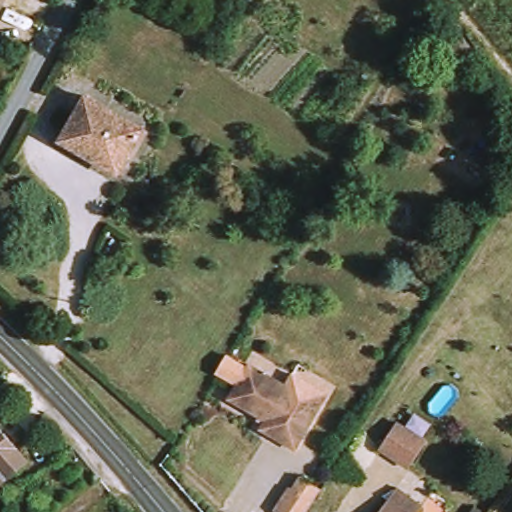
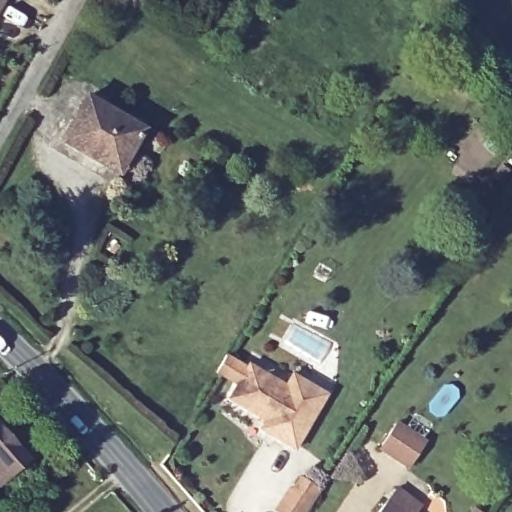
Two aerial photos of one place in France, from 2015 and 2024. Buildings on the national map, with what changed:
unchanged [(0,7),(0,0),(4,0),(0,7)]
unchanged [(122,173),(64,137),(87,98),(147,134),(122,173)]
unchanged [(222,376),(232,358),(252,370),(256,367),(326,408),(301,452),(266,432),(272,422),(236,402),(243,388),(222,376)]
unchanged [(397,421),(422,440),(404,463),(381,444),(397,421)]
unchanged [(8,475),(0,482),(0,426),(32,464),(12,480),(8,475)]
unchanged [(286,512),(274,503),(286,485),(290,486),(302,470),(322,484),(303,512),(286,512)]
unchanged [(423,509),(421,512),(380,512),(398,489),(423,509)]
unchanged [(486,512),(479,512),(482,508),(486,512)]

